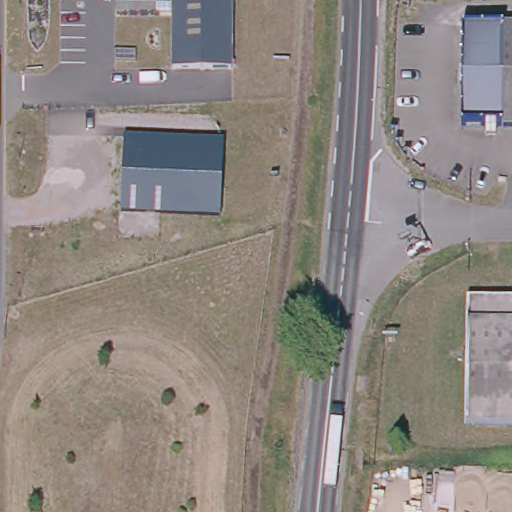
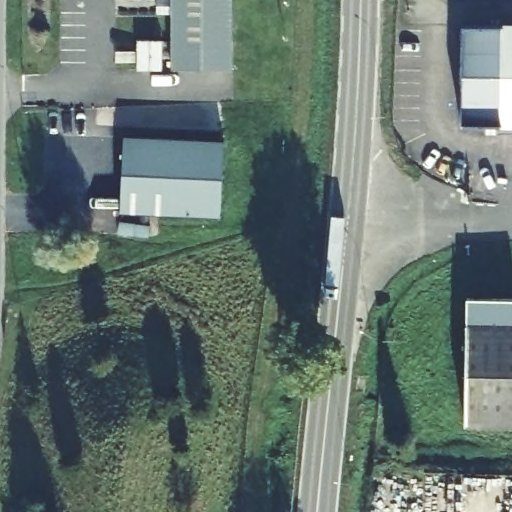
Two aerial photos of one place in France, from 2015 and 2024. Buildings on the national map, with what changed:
unchanged [(235,73),(169,72),(170,0),(235,0),(235,73)]
unchanged [(512,26),(512,127),(458,126),(460,25),(512,26)]
unchanged [(226,138),(222,215),(122,211),(126,134),(226,138)]
unchanged [(512,296),(512,430),(464,430),(465,296),(512,296)]

